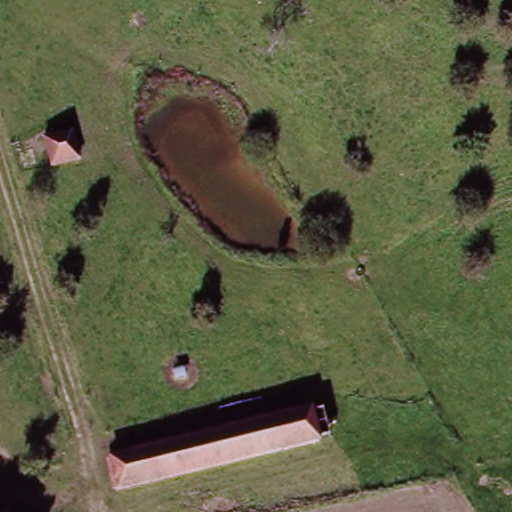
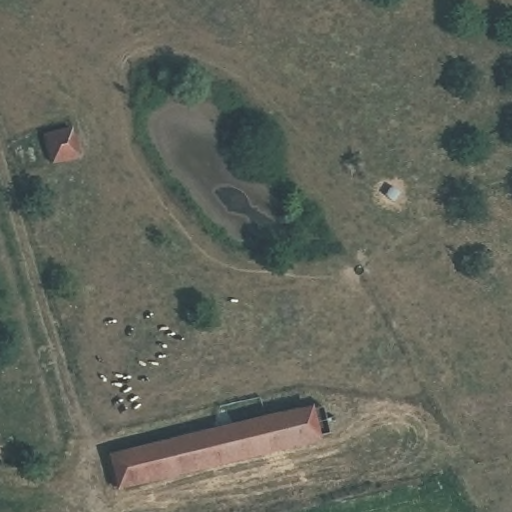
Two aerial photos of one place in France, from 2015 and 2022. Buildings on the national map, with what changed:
unchanged [(54,165),(46,137),(72,130),(80,157),(54,165)]
unchanged [(114,494),(106,461),(307,412),(309,417),(320,415),(327,442),(314,445),(315,447),(114,494)]

